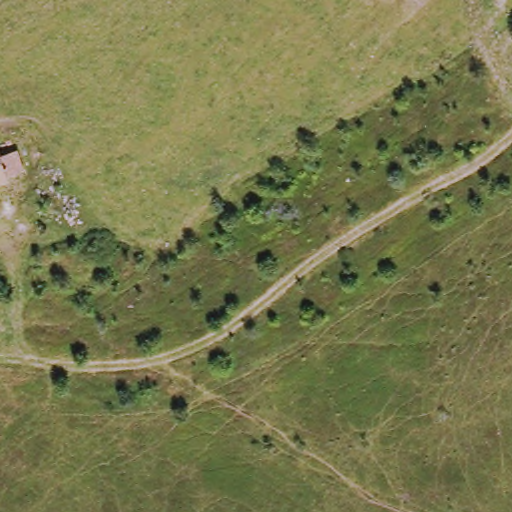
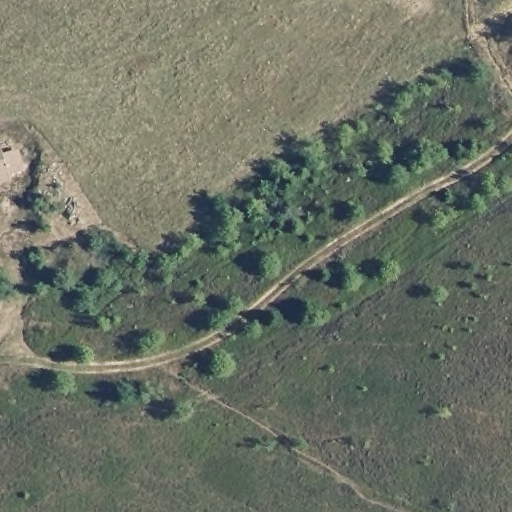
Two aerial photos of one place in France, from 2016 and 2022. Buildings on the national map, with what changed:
unchanged [(10,174),(0,176),(0,146),(10,174)]

